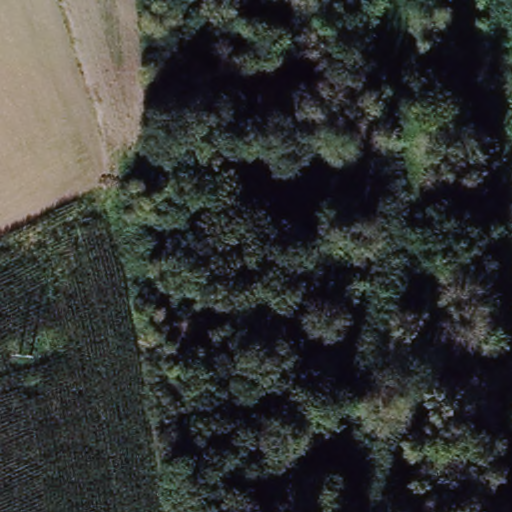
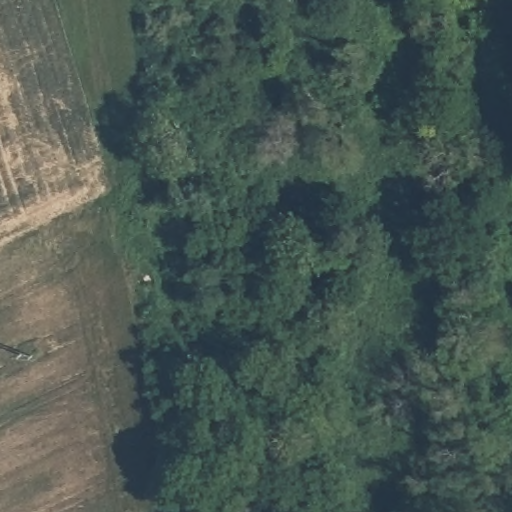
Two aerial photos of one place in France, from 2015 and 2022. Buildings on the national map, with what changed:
[]

